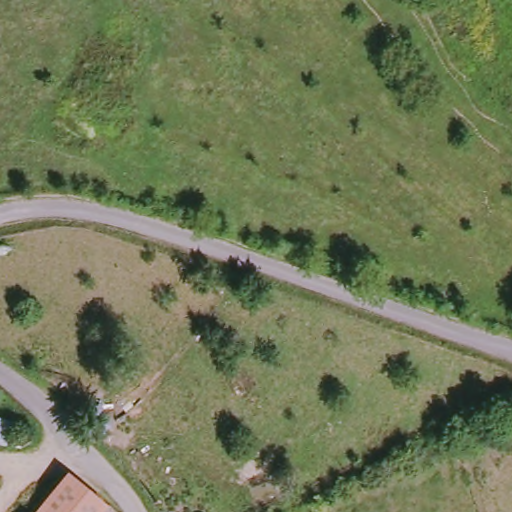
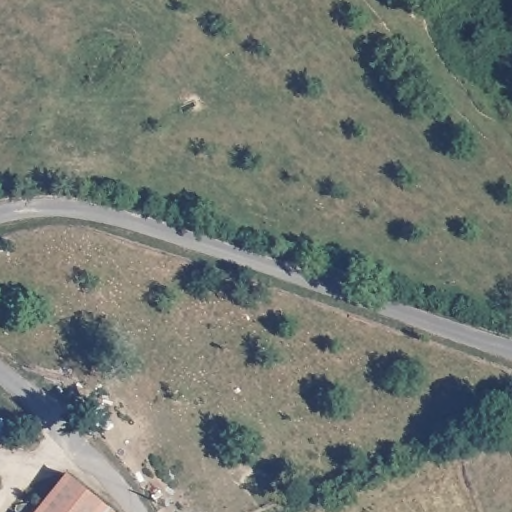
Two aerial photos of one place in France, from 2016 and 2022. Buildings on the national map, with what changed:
unchanged [(12,451),(0,448),(0,423),(16,427),(12,451)]
unchanged [(109,512),(34,512),(65,475),(109,512)]

